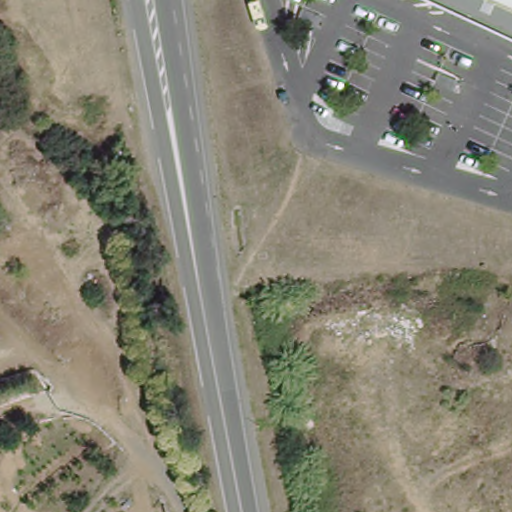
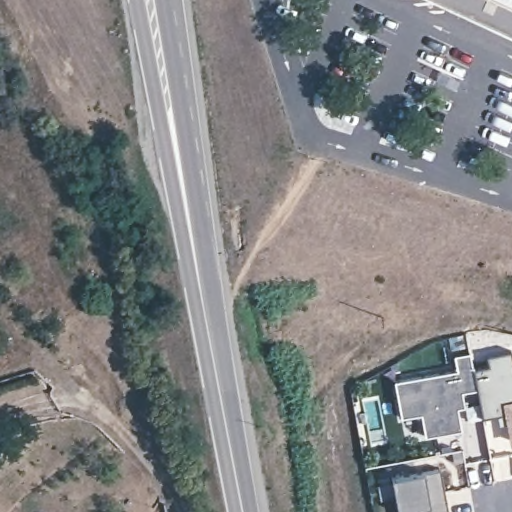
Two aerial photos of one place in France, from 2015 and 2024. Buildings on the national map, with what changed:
unchanged [(512,0),(512,33),(444,0),(512,0)]
unchanged [(5,335),(0,339),(0,328),(5,335)]
new [(485,358),(511,354),(512,357),(512,444),(511,444),(506,417),(481,421),(476,392),(472,372),(487,368),(485,358)]
new [(457,373),(455,358),(469,356),(472,372),(476,392),(461,395),(464,409),(457,411),(460,432),(424,438),(420,417),(400,419),(394,383),(457,373)]
new [(440,471),(447,512),(397,512),(391,481),(440,471)]

